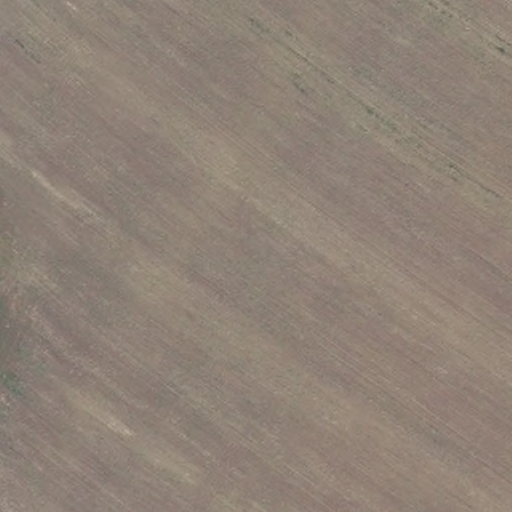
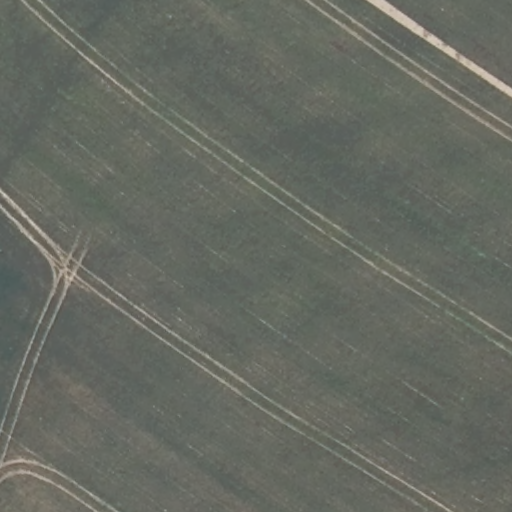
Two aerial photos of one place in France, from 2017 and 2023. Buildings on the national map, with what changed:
[]

